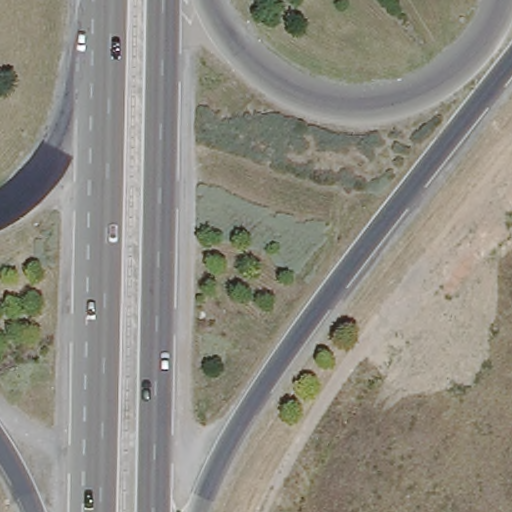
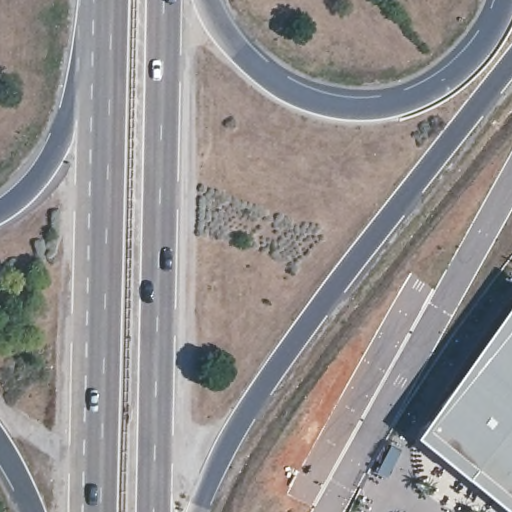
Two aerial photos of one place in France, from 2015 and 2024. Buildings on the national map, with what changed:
new [(512,509),(420,433),(512,322),(512,509)]

